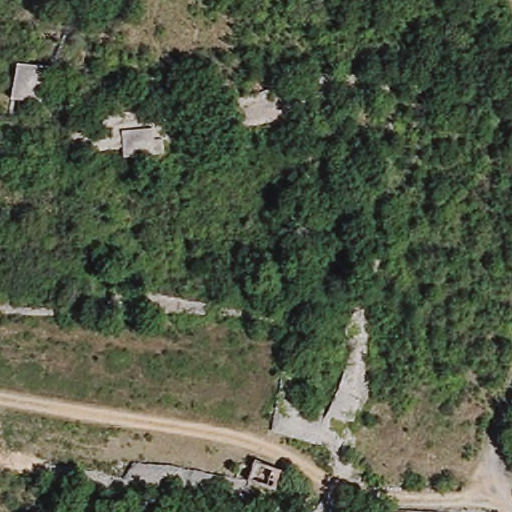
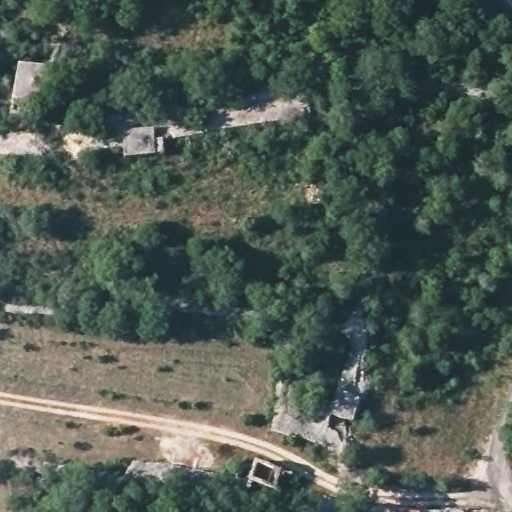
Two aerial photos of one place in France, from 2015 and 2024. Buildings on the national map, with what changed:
unchanged [(48,65),(43,101),(14,97),(18,63),(48,65)]
unchanged [(123,154),(120,130),(155,129),(158,151),(123,154)]

